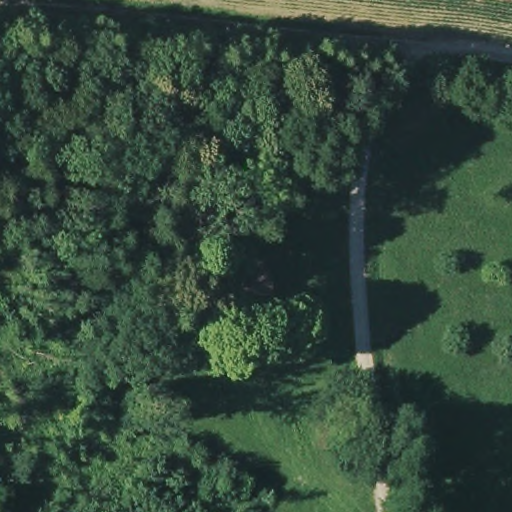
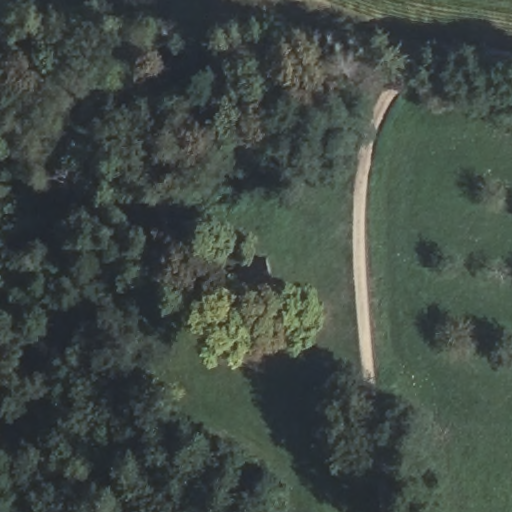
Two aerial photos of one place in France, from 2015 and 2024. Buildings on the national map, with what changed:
unchanged [(234,286),(247,282),(245,275),(276,270),(283,298),(252,305),(250,298),(237,300),(234,286)]
unchanged [(170,319),(162,372),(140,369),(148,315),(170,319)]

